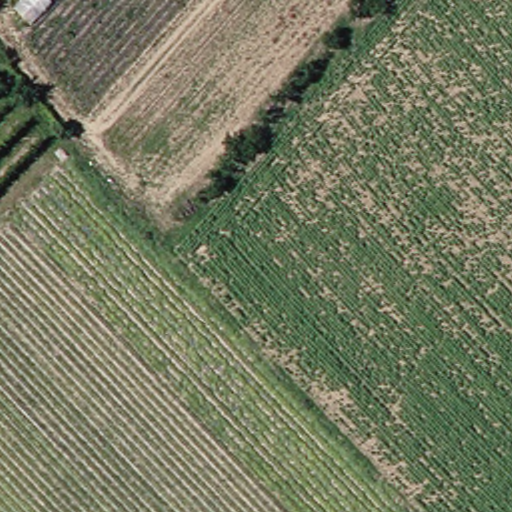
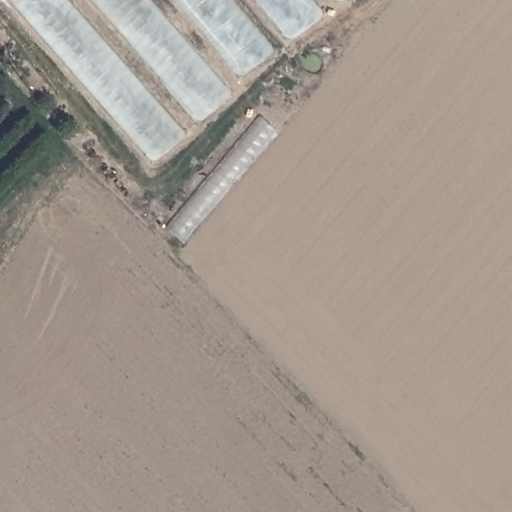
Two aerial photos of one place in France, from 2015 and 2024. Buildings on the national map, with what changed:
new [(153,164),(9,0),(153,0),(234,93),(153,164)]
new [(240,81),(170,0),(336,0),(240,81)]

